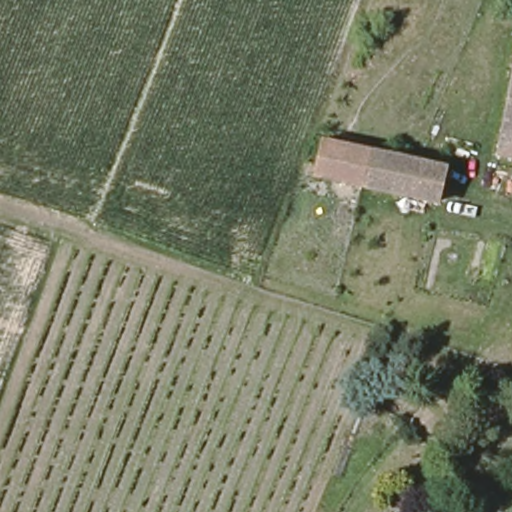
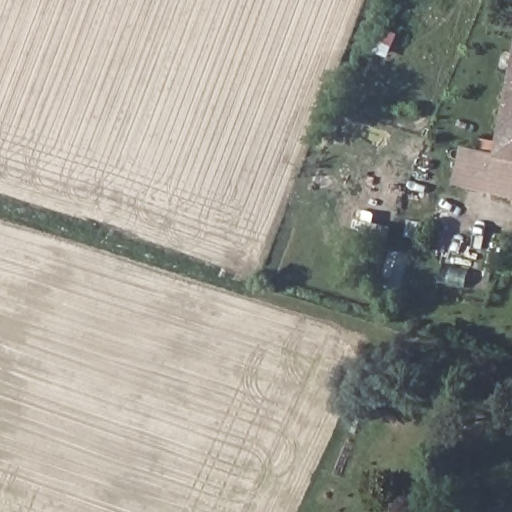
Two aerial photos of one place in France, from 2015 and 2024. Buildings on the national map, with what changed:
unchanged [(500,153),(512,90),(512,162),(499,158),(500,153)]
demolished [(443,205),(344,183),(323,178),(329,144),(357,150),(449,171),(443,205)]
new [(500,153),(499,158),(512,162),(512,197),(455,185),(463,146),(500,153)]

